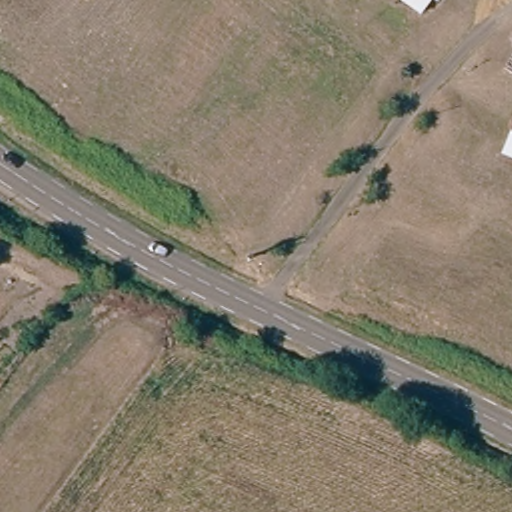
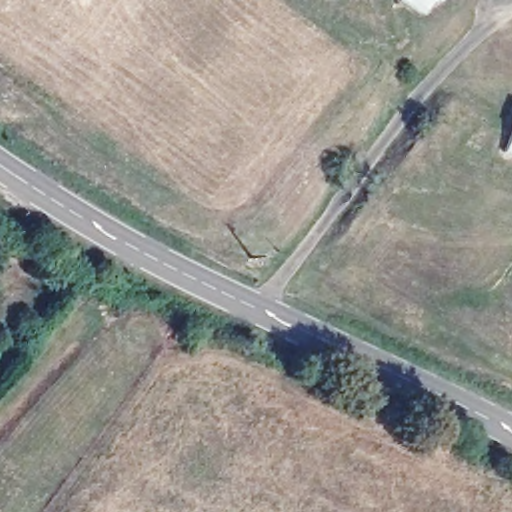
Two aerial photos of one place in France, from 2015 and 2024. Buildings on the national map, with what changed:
unchanged [(430,0),(428,3),(425,0),(430,0)]
unchanged [(505,156),(512,140),(512,138),(512,159),(505,156)]

